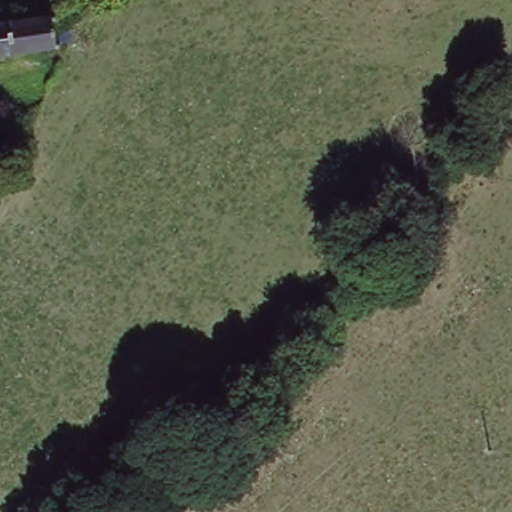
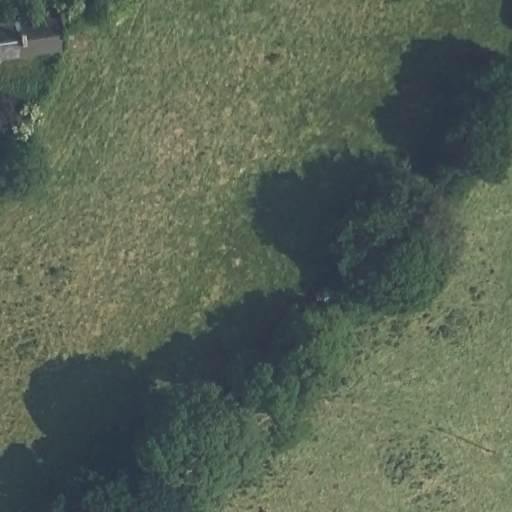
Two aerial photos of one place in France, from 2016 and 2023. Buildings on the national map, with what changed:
unchanged [(37,13),(77,10),(77,44),(41,47),(40,56),(30,56),(30,51),(20,51),(21,58),(12,59),(11,53),(1,53),(1,60),(0,61),(0,16),(37,13)]

